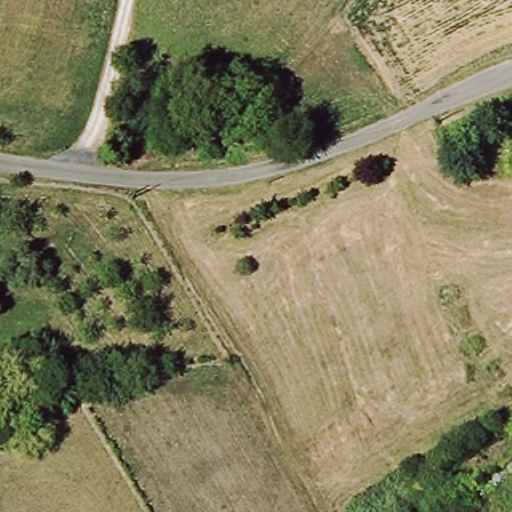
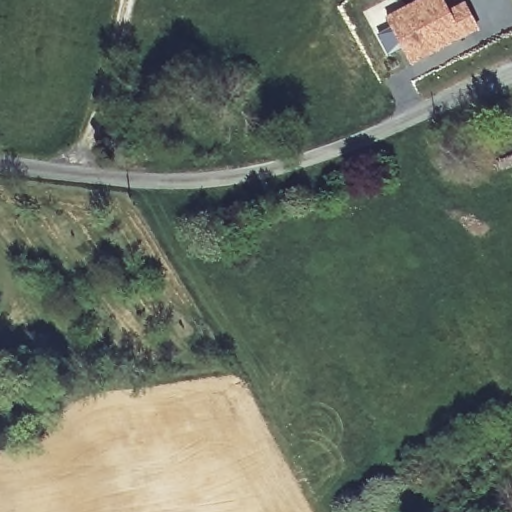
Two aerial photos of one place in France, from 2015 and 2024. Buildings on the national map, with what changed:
new [(419,0),(445,0),(450,10),(467,1),(480,30),(413,65),(388,17),(419,0)]

